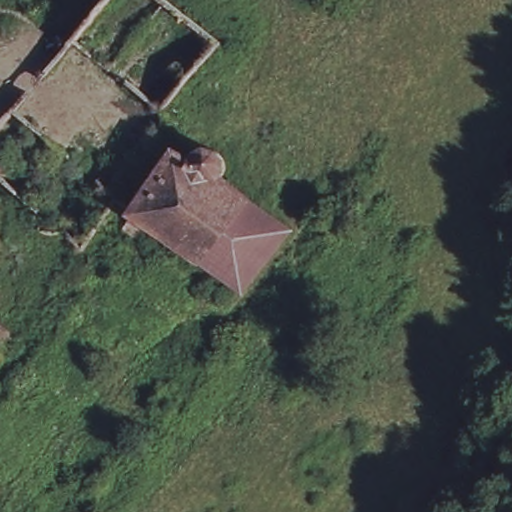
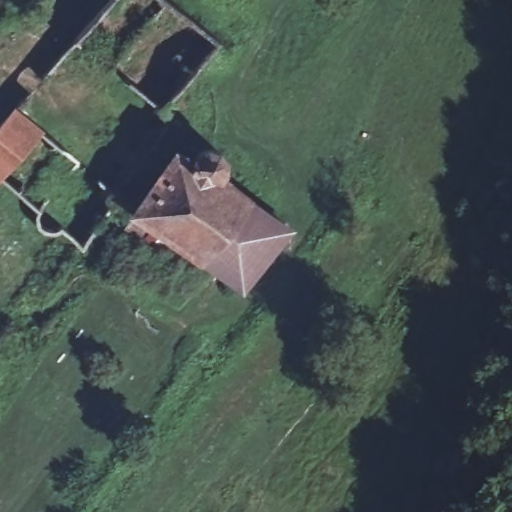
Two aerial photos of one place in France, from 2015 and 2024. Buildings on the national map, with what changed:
new [(1,177),(0,178),(0,118),(13,103),(15,105),(43,128),(41,131),(1,177)]
unchanged [(124,210),(168,155),(186,168),(191,163),(201,160),(209,164),(213,169),(216,177),(213,186),(283,239),(241,295),(124,210)]
unchanged [(0,343),(0,323),(9,331),(0,343)]

